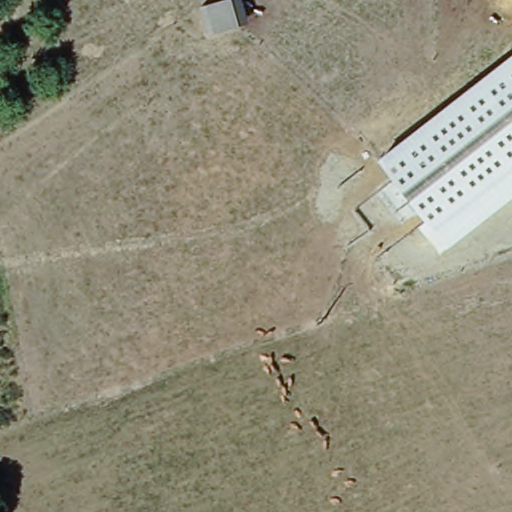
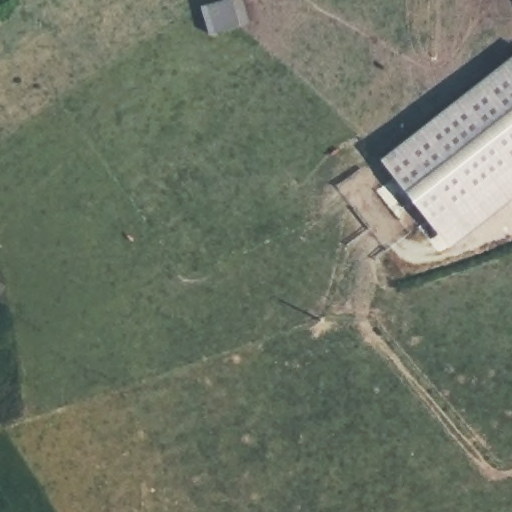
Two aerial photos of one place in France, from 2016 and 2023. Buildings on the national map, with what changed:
unchanged [(212,35),(202,6),(225,0),(232,0),(239,28),(212,35)]
unchanged [(512,56),(512,198),(449,247),(380,160),(512,56)]

